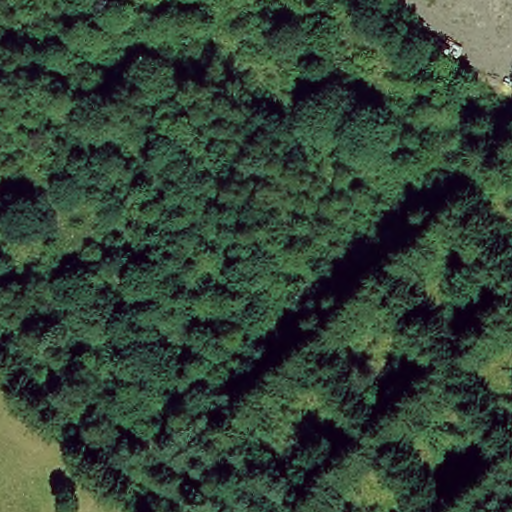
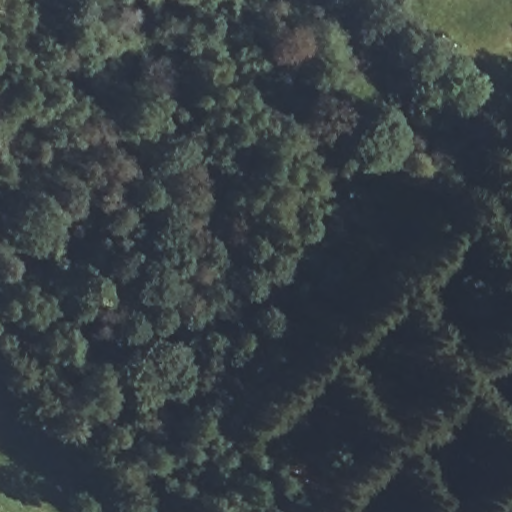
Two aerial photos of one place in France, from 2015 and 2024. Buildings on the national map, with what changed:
[]

